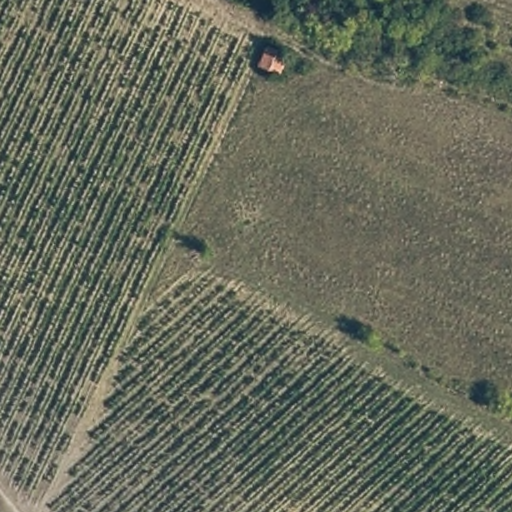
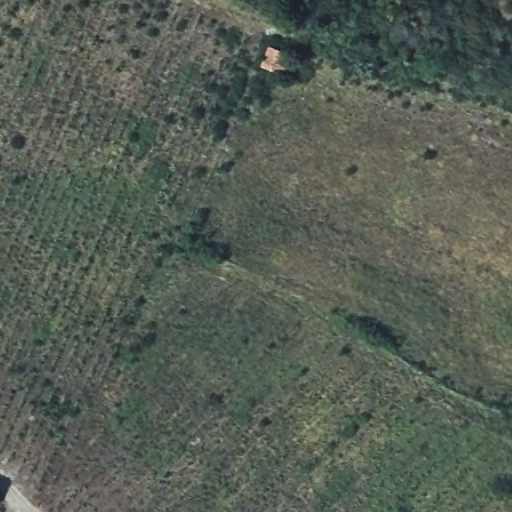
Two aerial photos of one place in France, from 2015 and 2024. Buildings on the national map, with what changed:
unchanged [(265,43),(291,53),(284,73),(257,65),(265,43)]

